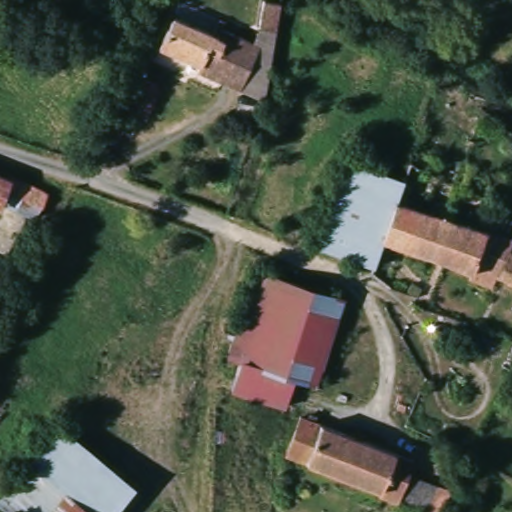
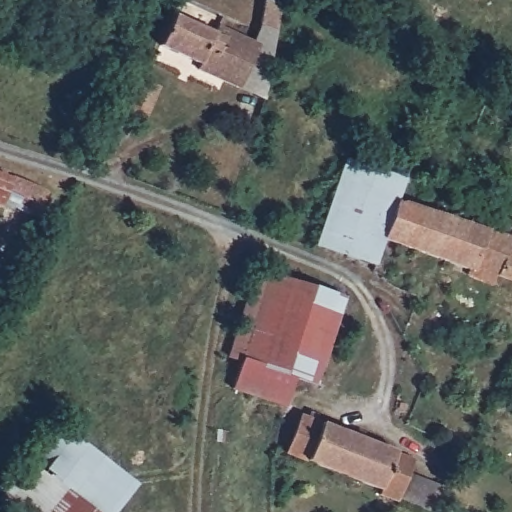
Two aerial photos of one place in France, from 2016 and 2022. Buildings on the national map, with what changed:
unchanged [(138,0),(133,11),(108,0),(138,0)]
unchanged [(246,85),(229,77),(185,57),(179,72),(154,61),(161,46),(175,14),(244,45),(258,51),(246,85)]
unchanged [(149,116),(133,109),(145,82),(160,87),(149,116)]
unchanged [(400,179),(394,197),(384,225),(379,240),(370,267),(315,248),(345,159),(400,179)]
unchanged [(0,206),(0,171),(1,172),(11,175),(0,206)]
unchanged [(50,190),(41,210),(10,199),(17,178),(50,190)]
unchanged [(384,225),(394,197),(512,236),(512,242),(507,254),(512,255),(512,284),(482,273),(472,270),(471,272),(379,240),(384,225)]
unchanged [(0,275),(0,265),(4,267),(0,275)]
unchanged [(238,355),(226,350),(253,265),(343,292),(315,378),(292,371),(283,400),(229,382),(238,355)]
unchanged [(409,478),(401,500),(381,493),(382,487),(298,455),(287,451),(300,411),(309,415),(418,458),(409,478)]
unchanged [(0,502),(0,496),(62,416),(142,486),(119,512),(12,512),(0,502)]

